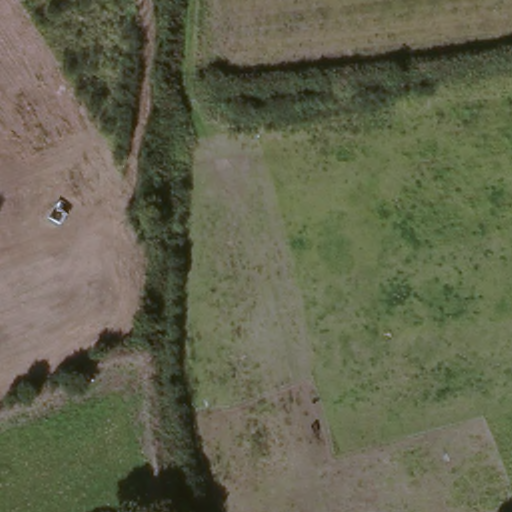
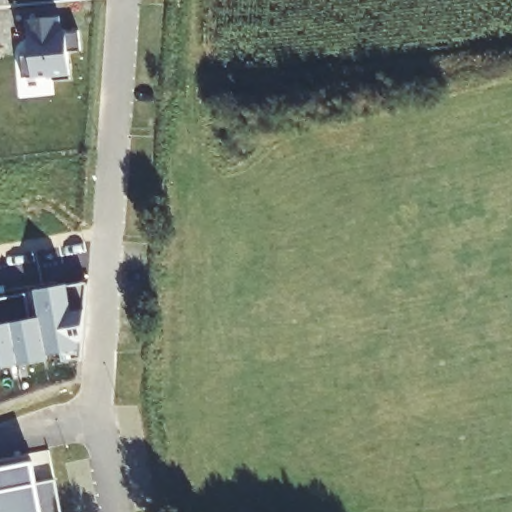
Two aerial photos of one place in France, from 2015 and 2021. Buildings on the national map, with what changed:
new [(33,53),(32,46),(28,47),(25,20),(58,16),(59,33),(78,31),(79,50),(66,51),(68,79),(51,80),(50,75),(20,78),(18,55),(33,53)]
new [(30,320),(39,318),(36,305),(34,290),(58,286),(66,285),(67,286),(86,283),(79,359),(61,362),(59,352),(46,355),(46,360),(0,367),(0,298),(26,294),(30,320)]
new [(34,481),(54,480),(60,512),(0,512),(0,468),(30,462),(34,481)]

